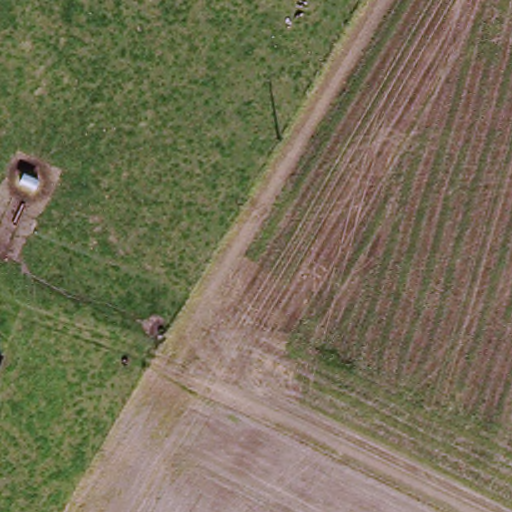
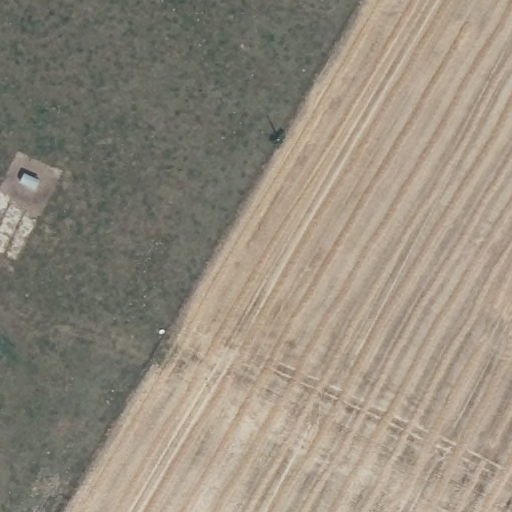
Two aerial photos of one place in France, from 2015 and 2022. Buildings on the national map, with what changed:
unchanged [(0,359),(0,353),(2,354),(0,359)]

